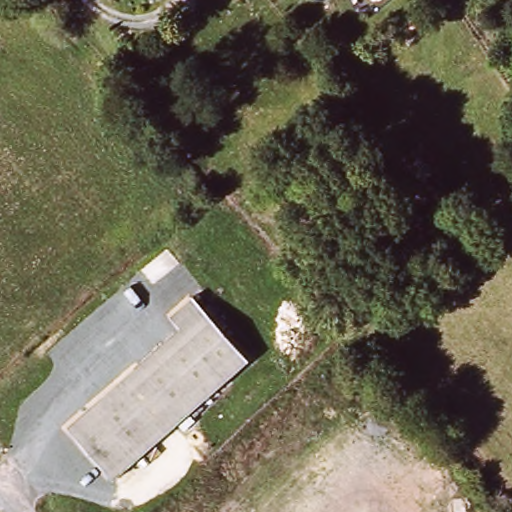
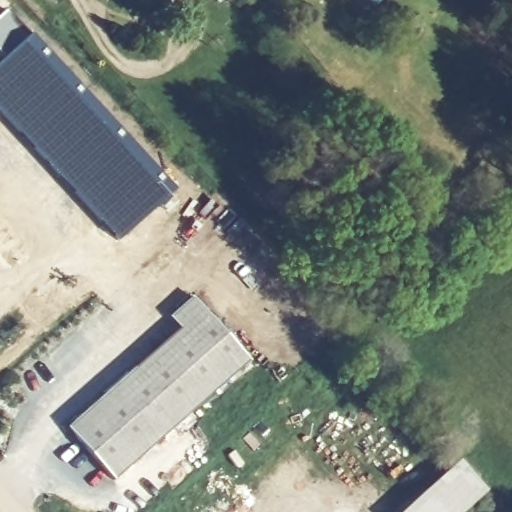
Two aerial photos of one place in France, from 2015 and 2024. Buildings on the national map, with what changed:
new [(29,33),(0,58),(0,12),(5,8),(29,33)]
new [(172,190),(116,241),(0,115),(0,58),(29,33),(172,190)]
unchanged [(272,187),(281,180),(290,190),(281,199),(272,187)]
unchanged [(117,477),(69,425),(182,324),(171,313),(195,292),(205,304),(252,356),(117,477)]
new [(487,490),(464,512),(401,512),(459,459),(487,490)]

